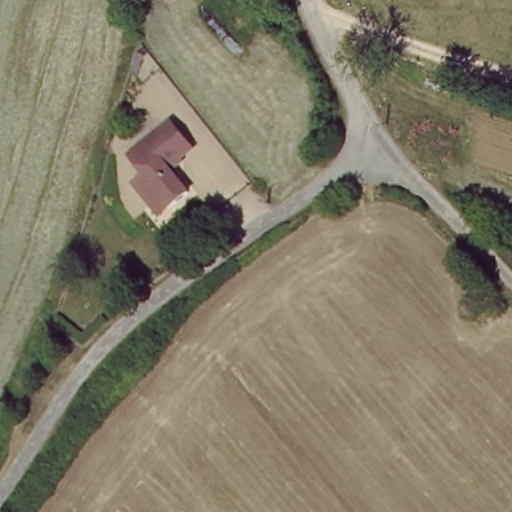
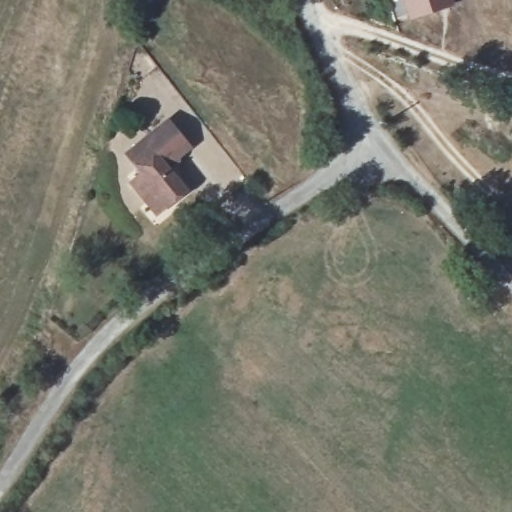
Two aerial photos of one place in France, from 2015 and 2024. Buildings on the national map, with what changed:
new [(410,20),(404,0),(450,0),(452,5),(410,20)]
unchanged [(150,205),(132,184),(143,174),(127,155),(165,121),(187,146),(164,167),(186,192),(171,205),(159,215),(150,205)]

